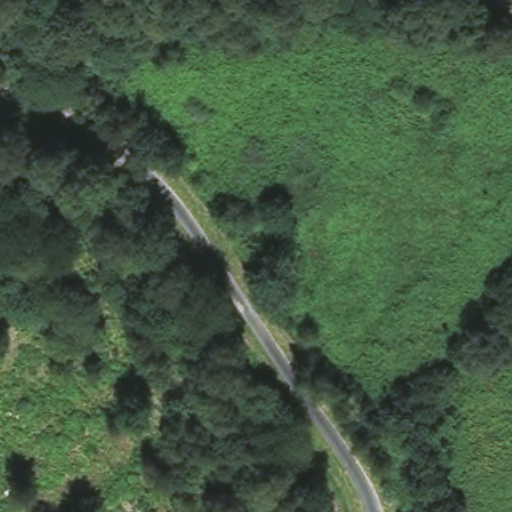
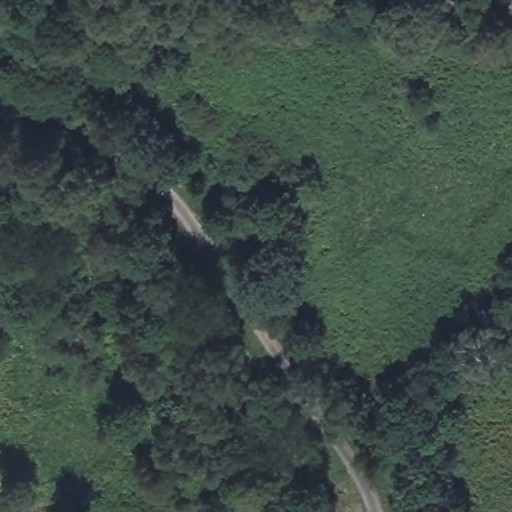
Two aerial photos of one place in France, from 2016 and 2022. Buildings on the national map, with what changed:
unchanged [(78,245),(63,265),(40,247),(55,227),(78,245)]

